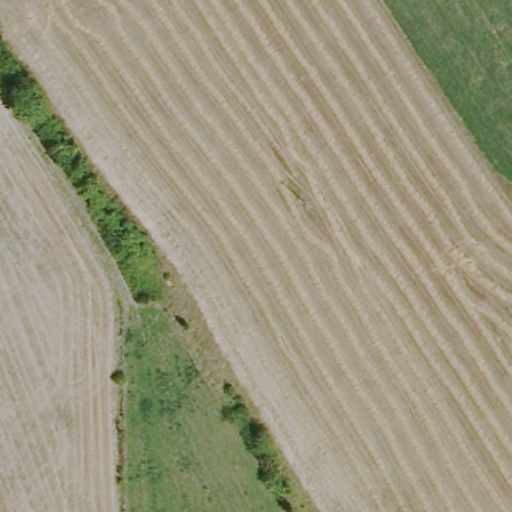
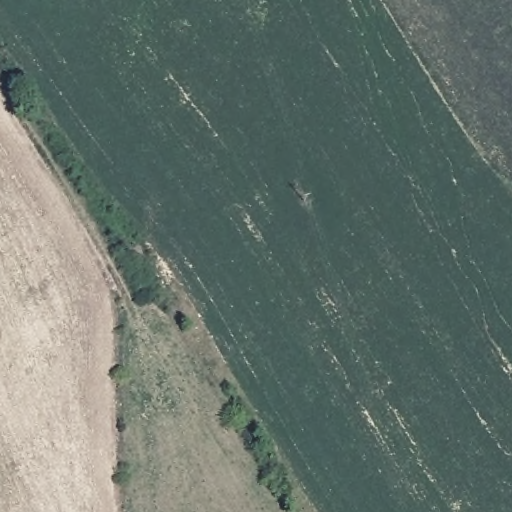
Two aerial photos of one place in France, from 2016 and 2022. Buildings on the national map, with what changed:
[]

